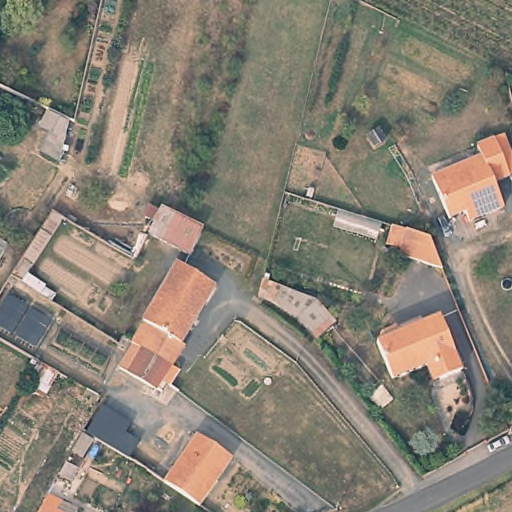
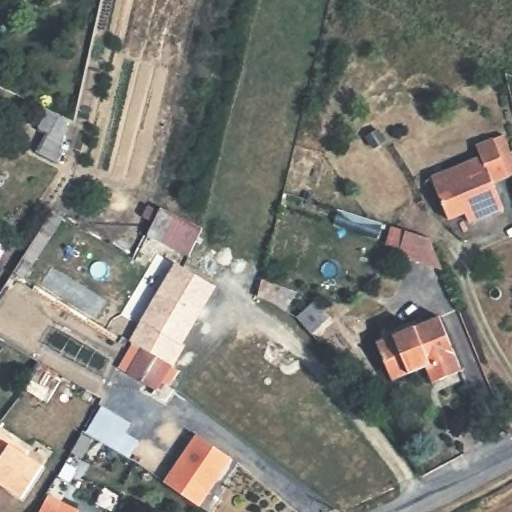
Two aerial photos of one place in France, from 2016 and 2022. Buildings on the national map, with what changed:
unchanged [(61,161),(37,152),(49,135),(38,127),(46,112),(68,120),(61,161)]
unchanged [(480,153),(475,144),(491,135),(509,172),(493,180),(504,204),(471,220),(466,211),(450,218),(431,177),(480,153)]
unchanged [(197,243),(190,257),(150,232),(165,206),(195,223),(204,227),(200,240),(197,243)]
unchanged [(56,207),(67,215),(29,272),(56,291),(50,300),(11,273),(56,207)]
unchanged [(431,241),(446,272),(400,255),(408,232),(431,241)]
unchanged [(127,373),(141,350),(131,344),(160,295),(175,267),(199,280),(212,287),(179,345),(183,347),(171,368),(158,392),(127,373)]
unchanged [(284,286),(318,300),(338,322),(318,339),(300,316),(271,301),(284,286)]
unchanged [(0,325),(0,309),(10,293),(53,318),(36,345),(0,325)]
unchanged [(421,367),(387,383),(370,347),(439,313),(464,367),(436,381),(429,384),(421,367)]
unchanged [(39,366),(60,377),(51,394),(29,381),(39,366)]
unchanged [(133,422),(129,431),(142,438),(131,457),(123,454),(117,465),(106,460),(111,447),(98,439),(84,460),(71,452),(101,404),(133,422)]
new [(28,451),(26,453),(44,463),(20,497),(0,484),(0,431),(28,451)]
unchanged [(199,438),(227,460),(232,462),(217,483),(198,510),(164,486),(199,438)]
unchanged [(62,505),(59,512),(41,512),(47,500),(62,505)]

